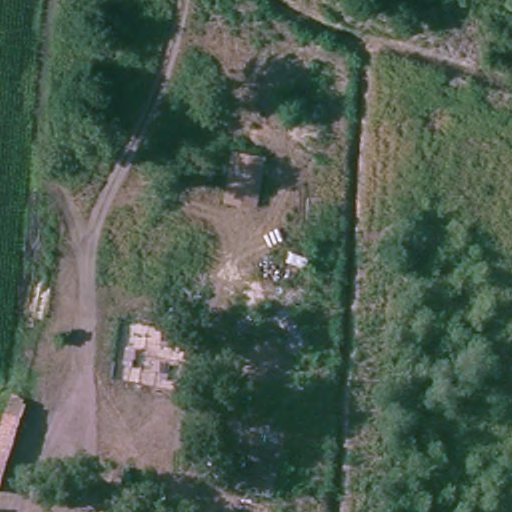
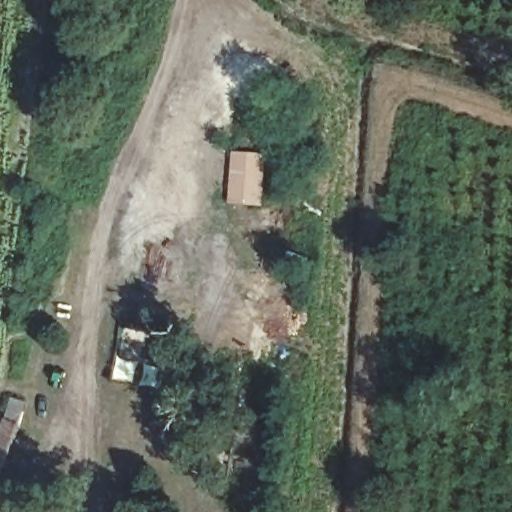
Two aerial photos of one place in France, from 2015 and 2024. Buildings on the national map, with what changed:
new [(230,148),(264,154),(257,206),(222,200),(230,148)]
unchanged [(28,403),(3,487),(0,486),(0,422),(7,397),(28,403)]

